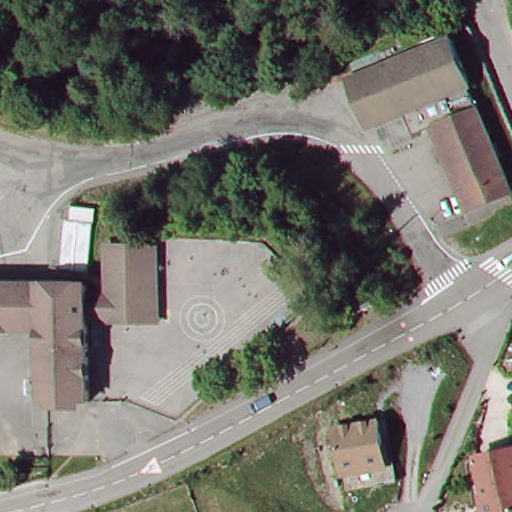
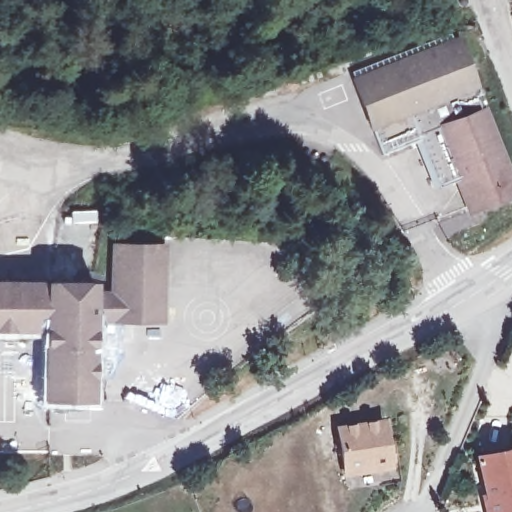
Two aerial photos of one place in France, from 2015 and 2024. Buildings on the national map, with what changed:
unchanged [(512,197),(468,210),(444,121),(422,129),(417,112),(381,122),(367,72),(424,54),(471,42),(486,107),(512,190),(512,197)]
unchanged [(106,289),(105,243),(156,242),(157,317),(82,319),(82,290),(106,289)]
unchanged [(82,319),(87,403),(37,405),(34,343),(47,342),(46,330),(0,332),(0,282),(80,280),(82,290),(82,319)]
unchanged [(373,287),(378,300),(359,308),(353,297),(373,287)]
unchanged [(382,430),(388,475),(343,481),(337,437),(382,430)]
unchanged [(512,456),(512,512),(486,512),(484,502),(487,502),(479,463),(512,456)]

